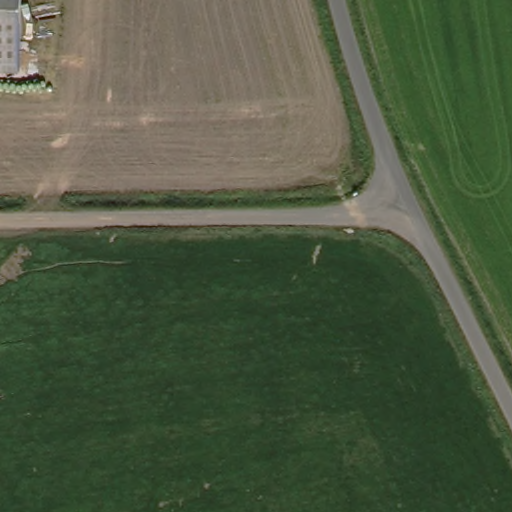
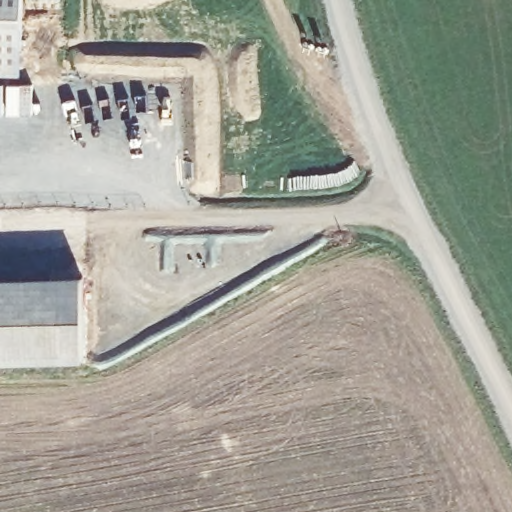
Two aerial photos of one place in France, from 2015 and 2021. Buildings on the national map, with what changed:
unchanged [(0,0),(21,0),(21,75),(0,74),(0,0)]
new [(85,362),(0,364),(0,277),(82,276),(85,362)]

